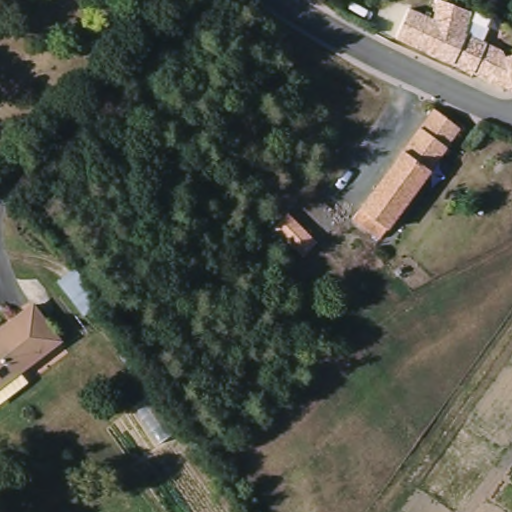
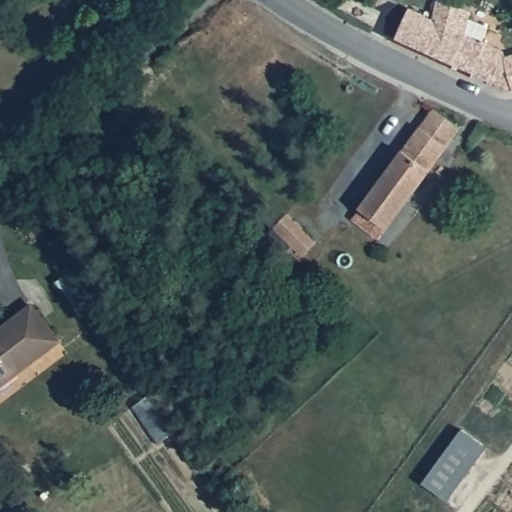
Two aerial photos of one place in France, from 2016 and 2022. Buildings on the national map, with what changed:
unchanged [(427,49),(401,37),(414,8),(439,20),(441,8),(442,0),(446,0),(461,6),(461,9),(476,12),(474,19),(493,27),(486,42),(507,51),(510,57),(512,56),(512,89),(494,82),(478,72),(427,49)]
unchanged [(369,247),(343,230),(432,110),(458,130),(369,247)]
unchanged [(283,212),(316,234),(305,251),(293,244),(272,230),(277,222),(283,212)]
unchanged [(0,329),(34,306),(58,341),(0,381),(0,329)]
new [(467,426),(492,444),(453,498),(448,495),(428,480),(461,435),(467,426)]

